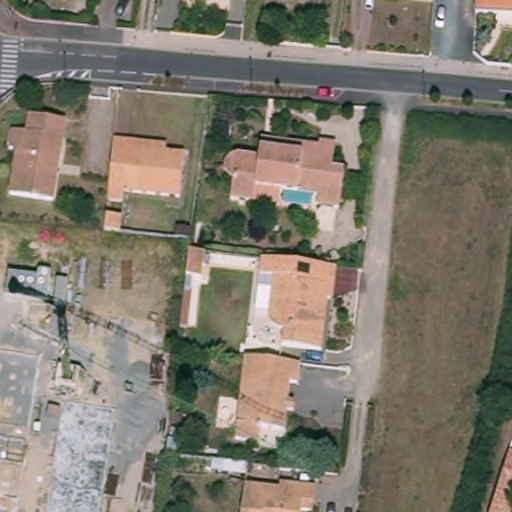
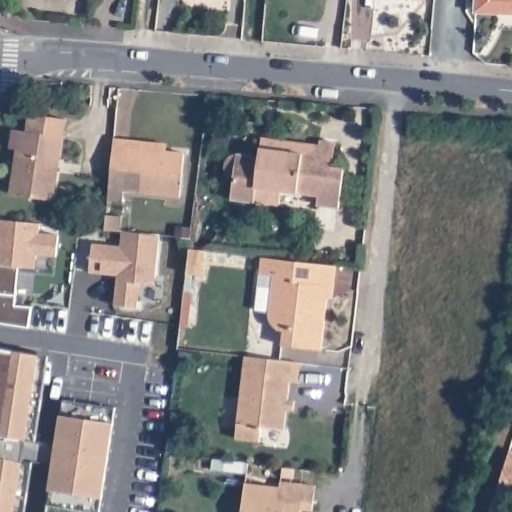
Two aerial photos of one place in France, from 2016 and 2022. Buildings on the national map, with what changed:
unchanged [(482,0),(512,0),(512,18),(481,16),(482,0)]
unchanged [(32,113),(71,119),(59,199),(13,191),(21,148),(13,146),(17,128),(24,129),(30,129),(32,113)]
unchanged [(259,202),(236,199),(238,179),(235,177),(234,176),(232,172),(232,171),(231,168),(231,166),(232,163),(232,161),(234,159),(236,157),(237,156),(239,155),(241,155),(243,154),(263,156),(264,146),(266,137),(322,144),(323,139),(340,141),(337,166),(349,168),(344,207),(323,204),(323,194),(285,190),(283,205),(259,202)]
unchanged [(118,138),(170,143),(169,149),(189,151),(185,196),(128,191),(127,199),(112,198),(117,150),(118,138)]
unchanged [(104,227),(105,211),(120,213),(119,229),(104,227)]
new [(29,326),(0,322),(0,220),(41,223),(41,233),(57,234),(57,256),(37,255),(35,268),(20,266),(15,305),(32,307),(29,326)]
new [(94,241),(123,244),(124,229),(161,233),(155,284),(141,283),(138,307),(116,305),(119,275),(91,272),(94,241)]
demolished [(74,253),(67,295),(0,285),(0,242),(74,253)]
unchanged [(204,248),(200,273),(188,271),(191,246),(204,248)]
unchanged [(336,287),(330,286),(328,293),(332,298),(326,349),(285,344),(286,330),(284,330),(280,329),(278,327),(275,326),(273,324),(272,322),(270,319),(270,313),(275,274),(264,272),(266,255),(301,259),(340,264),(336,287)]
demolished [(131,373),(99,371),(102,346),(175,355),(173,376),(131,373)]
new [(114,407),(112,423),(101,498),(99,512),(46,512),(49,489),(53,462),(31,458),(23,512),(0,512),(0,348),(39,354),(47,355),(35,440),(56,443),(60,414),(63,401),(114,407)]
demolished [(39,361),(44,361),(39,407),(19,406),(20,396),(0,394),(0,358),(39,361)]
unchanged [(301,387),(293,385),(287,433),(265,430),(263,444),(239,441),(248,360),(303,366),(301,387)]
demolished [(165,440),(93,431),(99,371),(131,373),(173,376),(165,440)]
unchanged [(305,512),(247,512),(251,481),(284,485),(285,480),(319,486),(317,508),(306,507),(305,512)]

